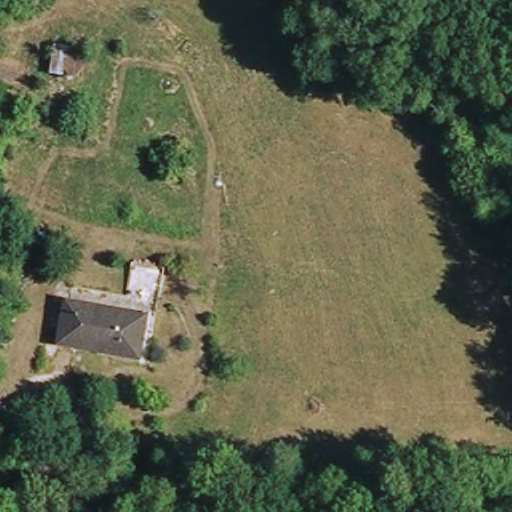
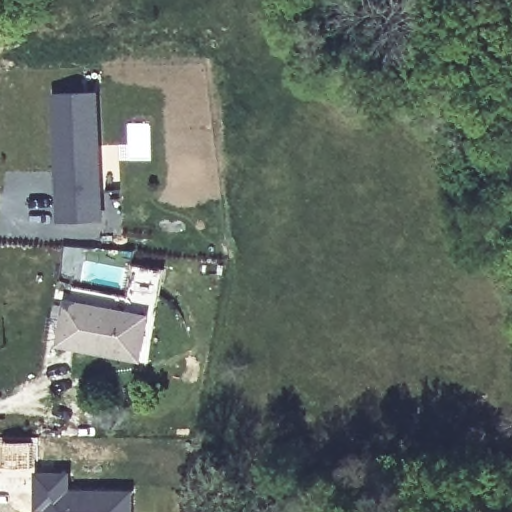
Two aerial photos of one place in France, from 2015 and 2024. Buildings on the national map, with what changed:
demolished [(42,82),(37,127),(4,123),(7,77),(42,82)]
new [(52,92),(99,91),(104,221),(57,221),(52,92)]
new [(132,264),(164,270),(159,297),(127,292),(132,264)]
unchanged [(56,347),(64,306),(147,322),(139,366),(56,347)]
new [(34,467),(0,467),(0,439),(33,439),(34,467)]
new [(35,468),(71,470),(72,487),(134,487),(134,512),(41,512),(35,512),(35,468)]

